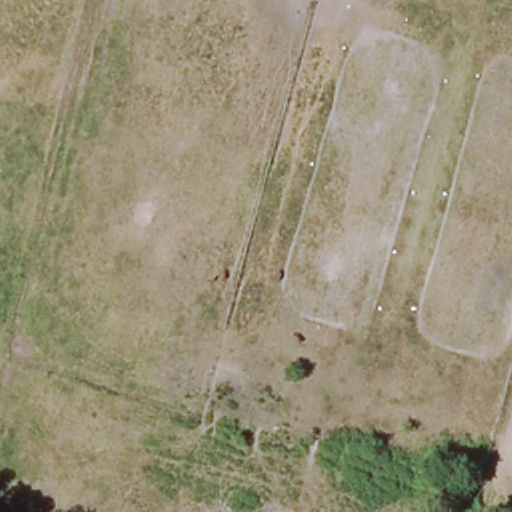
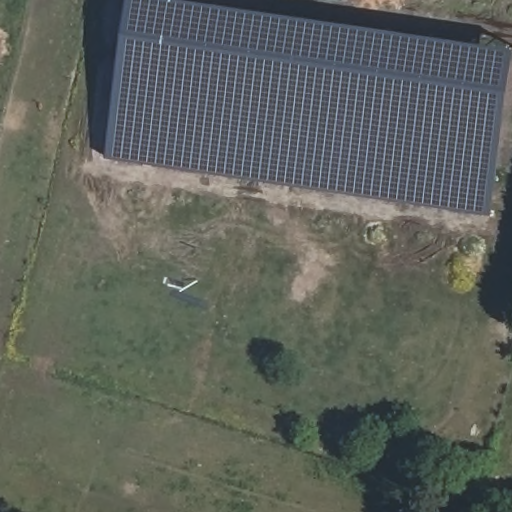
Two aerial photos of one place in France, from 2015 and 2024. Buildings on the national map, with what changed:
new [(129,0),(214,0),(512,43),(512,72),(492,214),(106,157),(129,0)]

